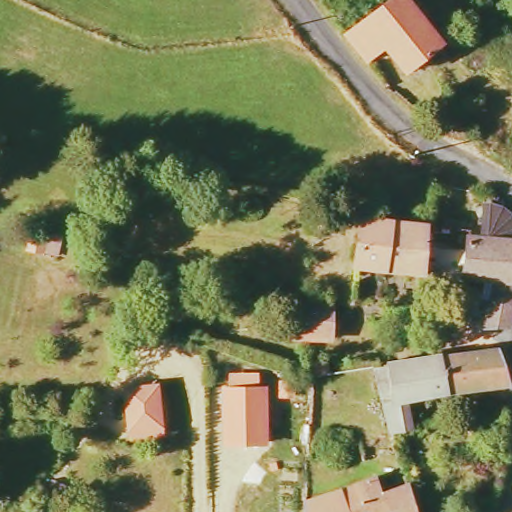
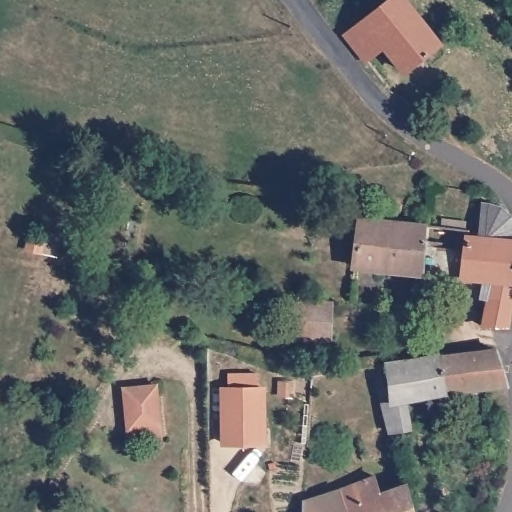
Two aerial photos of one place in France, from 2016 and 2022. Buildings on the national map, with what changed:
unchanged [(407,0),(414,0),(447,49),(407,78),(388,49),(370,59),(355,36),(372,24),(407,0)]
unchanged [(498,298),(489,298),(492,277),(475,276),(481,237),(495,239),(499,206),(512,207),(512,325),(495,327),(498,298)]
unchanged [(430,271),(367,263),(368,253),(373,219),(435,225),(430,271)]
unchanged [(292,339),(296,302),(302,302),(313,303),(338,306),(336,342),(320,341),(301,340),(292,339)]
unchanged [(497,357),(505,383),(445,395),(440,365),(497,357)]
unchanged [(440,365),(445,395),(403,402),(410,431),(392,435),(376,372),(440,365)]
unchanged [(333,380),(325,381),(320,380),(316,371),(329,368),(333,380)]
unchanged [(161,438),(126,442),(121,389),(157,385),(161,438)]
unchanged [(268,446),(221,447),(221,388),(268,387),(268,446)]
unchanged [(312,506),(382,482),(387,496),(408,487),(418,512),(312,512),(312,506)]

